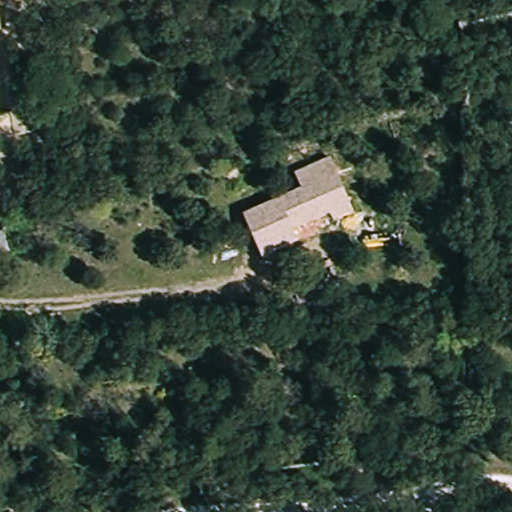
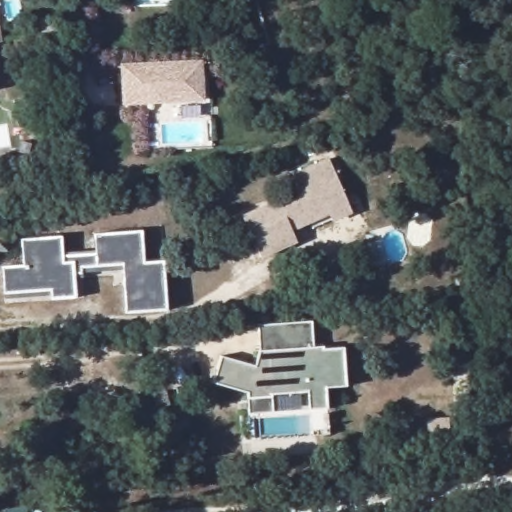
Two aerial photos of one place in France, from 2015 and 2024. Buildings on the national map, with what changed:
unchanged [(0,40),(0,30),(2,40),(0,40)]
new [(204,101),(121,105),(118,65),(201,60),(204,101)]
unchanged [(295,173),(330,159),(355,214),(335,225),(331,215),(294,232),(300,244),(264,263),(244,215),(302,190),(295,173)]
unchanged [(4,252),(0,253),(0,229),(3,229),(4,252)]
new [(60,237),(61,257),(93,256),(93,236),(141,235),(142,267),(162,266),(163,316),(121,319),(120,269),(80,270),(80,280),(71,280),(72,299),(48,300),(47,291),(0,292),(0,265),(21,265),(20,239),(60,237)]
new [(249,418),(248,402),(248,396),(213,387),(220,360),(256,370),(259,355),(257,329),(313,325),(315,351),(325,350),(325,353),(345,351),(348,390),(328,392),(329,412),(311,414),(309,395),(273,398),(273,400),(274,416),(249,418)]

